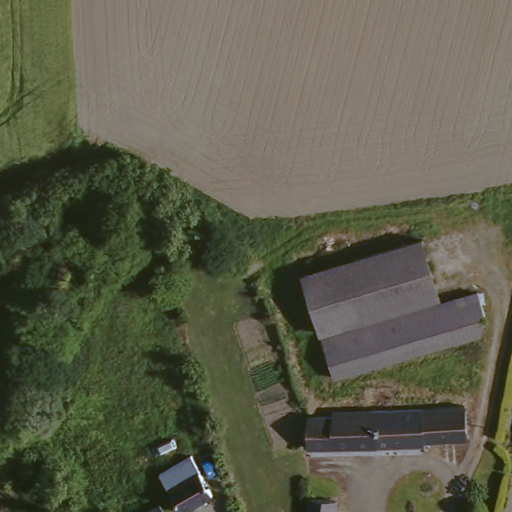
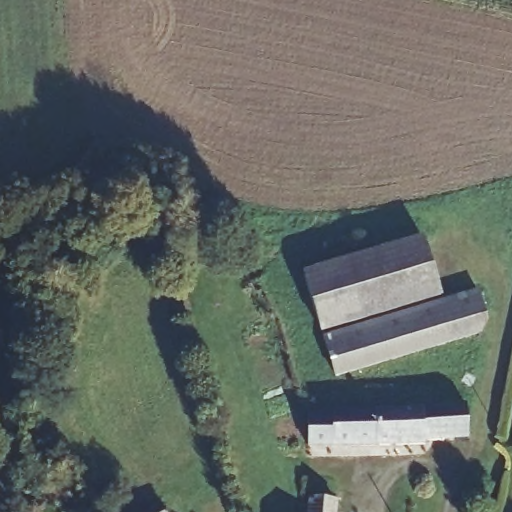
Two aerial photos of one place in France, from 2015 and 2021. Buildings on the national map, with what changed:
unchanged [(436,307),(319,336),(304,277),(421,247),(436,307)]
unchanged [(473,305),(479,330),(476,346),(329,382),(319,342),(473,305)]
unchanged [(371,411),(372,451),(303,451),(307,418),(328,418),(333,418),(334,412),(371,411)]
unchanged [(374,411),(458,411),(460,411),(461,442),(419,443),(418,450),(407,450),(372,451),(371,411),(374,411)]
demolished [(207,498),(175,508),(164,472),(196,462),(207,498)]
unchanged [(334,504),(332,512),(305,512),(307,501),(334,504)]
unchanged [(161,512),(132,512),(161,506),(161,512)]

